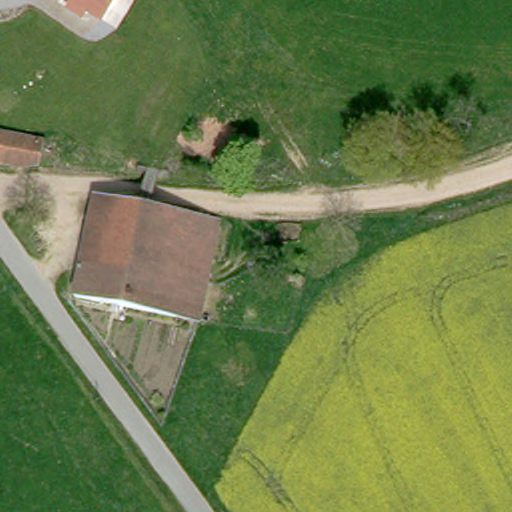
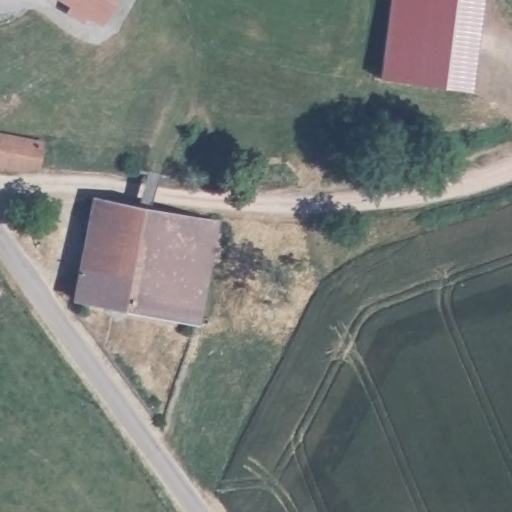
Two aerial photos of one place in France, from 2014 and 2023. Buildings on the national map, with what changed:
unchanged [(87,16),(83,22),(66,11),(70,4),(64,0),(118,0),(103,23),(87,16)]
new [(470,89),(380,78),(390,0),(483,0),(470,89)]
unchanged [(40,134),(37,168),(0,164),(0,133),(7,134),(7,130),(40,134)]
unchanged [(73,294),(95,197),(220,218),(196,322),(73,294)]

